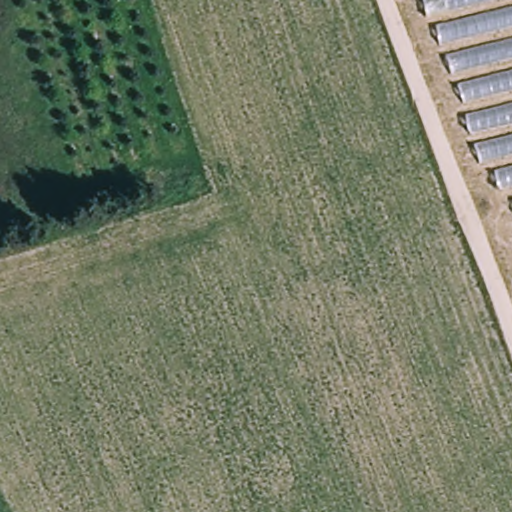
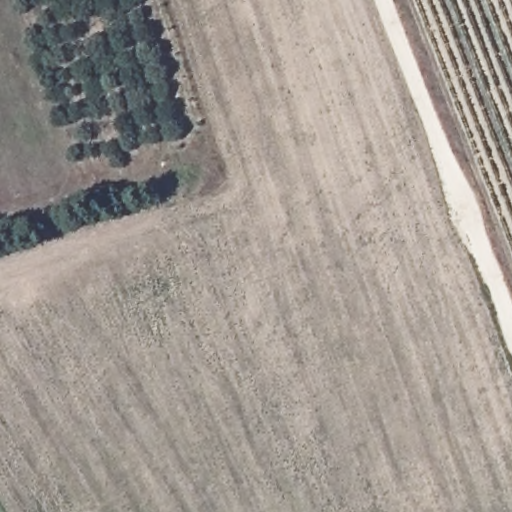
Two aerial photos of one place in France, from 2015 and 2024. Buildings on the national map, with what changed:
demolished [(499,185),(489,154),(480,155),(425,0),(512,0),(512,191),(509,183),(499,185)]

